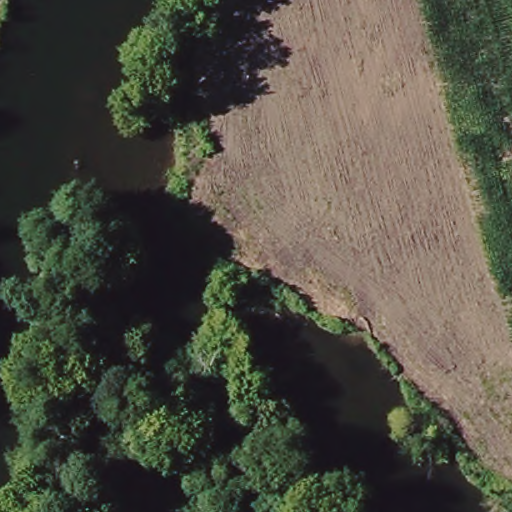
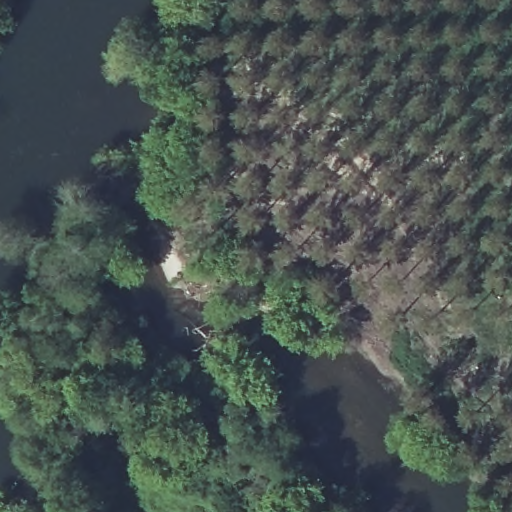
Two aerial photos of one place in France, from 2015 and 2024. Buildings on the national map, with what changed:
[]

